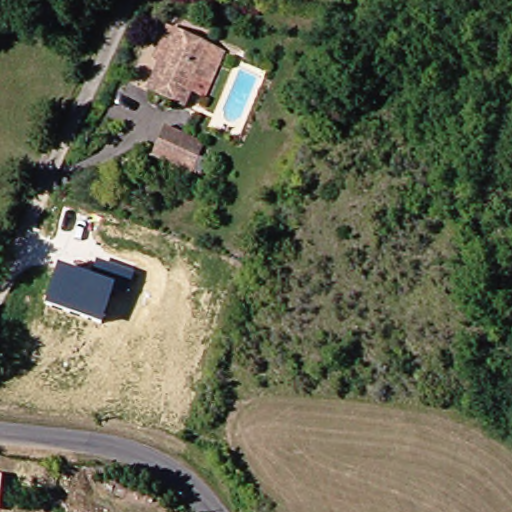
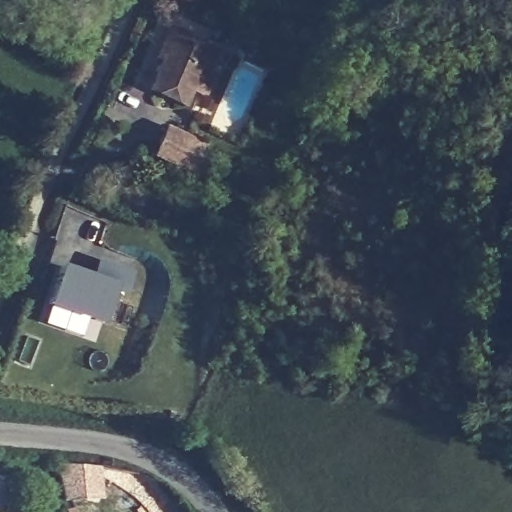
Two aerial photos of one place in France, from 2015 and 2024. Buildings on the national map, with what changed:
unchanged [(213,87),(199,82),(187,112),(150,97),(164,67),(155,64),(169,34),(176,37),(226,58),(213,87)]
unchanged [(197,174),(160,159),(170,131),(209,147),(197,174)]
unchanged [(59,268),(90,280),(98,258),(134,271),(127,294),(112,291),(100,325),(45,306),(59,268)]
new [(100,464),(104,497),(62,501),(60,467),(100,464)]
unchanged [(0,486),(0,477),(1,477),(0,486)]
demolished [(61,503),(59,485),(74,483),(79,502),(61,503)]

